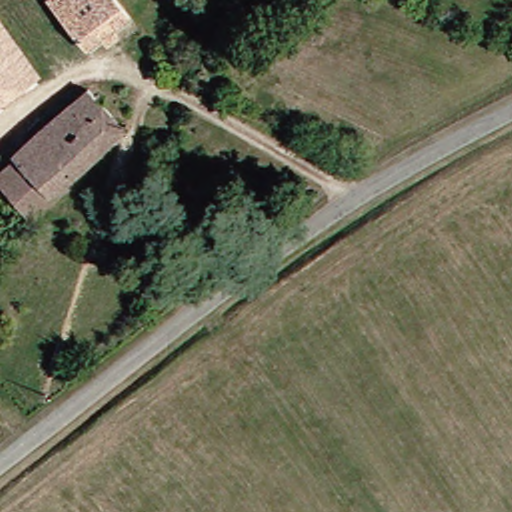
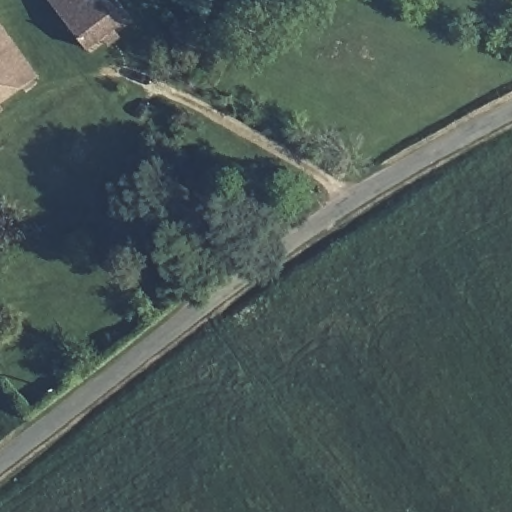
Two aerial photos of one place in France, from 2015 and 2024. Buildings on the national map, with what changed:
unchanged [(44,0),(76,0),(51,18),(39,3),(44,0)]
unchanged [(117,0),(138,27),(85,66),(51,18),(76,0),(117,0)]
unchanged [(0,13),(5,19),(0,23),(0,13)]
unchanged [(29,81),(0,102),(0,43),(29,81)]
demolished [(0,171),(9,163),(3,157),(79,94),(115,133),(17,216),(0,196),(0,171)]
unchanged [(199,244),(210,251),(194,274),(180,267),(199,244)]

